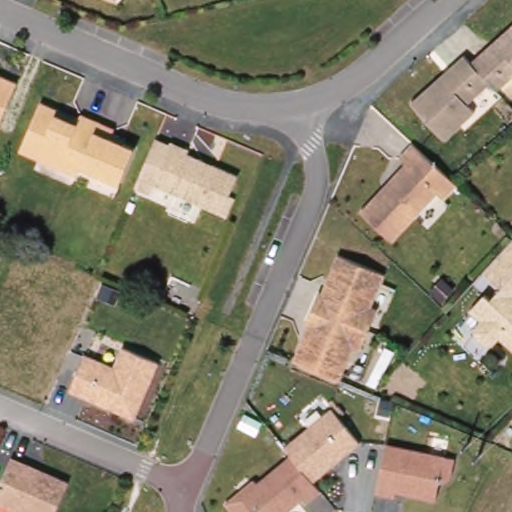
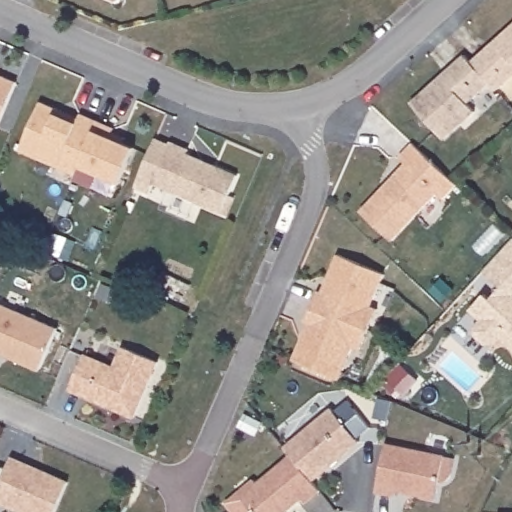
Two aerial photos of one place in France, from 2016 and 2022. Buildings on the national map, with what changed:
unchanged [(501,92),(494,84),(483,71),(476,63),(489,52),(498,42),(512,31),(512,82),(501,92)]
unchanged [(472,104),(479,112),(448,141),(415,104),(446,76),(456,67),(469,56),(476,63),(483,71),(494,84),(472,104)]
unchanged [(3,128),(0,127),(0,74),(22,83),(3,128)]
unchanged [(24,152),(45,102),(63,110),(84,119),(86,115),(103,122),(84,167),(80,176),(63,168),(42,159),(24,152)]
unchanged [(119,129),(117,134),(130,139),(128,144),(140,149),(124,184),(84,167),(103,122),(119,129)]
unchanged [(410,159),(404,153),(417,139),(455,174),(459,178),(462,181),(448,195),(442,189),(397,237),(365,207),(410,159)]
unchanged [(194,150),(192,154),(242,176),(226,214),(157,184),(175,142),(194,150)]
unchanged [(504,337),(497,345),(490,345),(479,335),(479,328),(486,321),(474,311),(489,295),(495,300),(506,288),(487,272),(512,246),(512,345),(504,337)]
unchanged [(317,306),(323,292),(327,293),(333,278),(343,255),(389,275),(375,307),(382,310),(378,320),(373,331),(317,306)]
new [(40,371),(0,354),(0,304),(58,329),(40,371)]
unchanged [(317,306),(373,331),(365,351),(358,347),(344,380),(326,372),(298,361),(306,342),(314,322),(311,321),(317,306)]
unchanged [(135,420),(68,392),(85,354),(113,367),(122,347),(158,363),(135,420)]
unchanged [(290,458),(283,448),(331,410),(358,445),(311,485),(290,458)]
unchanged [(454,463),(450,485),(440,482),(435,503),(396,493),(395,501),(374,497),(387,447),(454,463)]
unchanged [(295,512),(229,512),(225,507),(290,458),(318,494),(295,512)]
unchanged [(59,512),(11,512),(0,507),(0,489),(13,460),(71,484),(59,512)]

